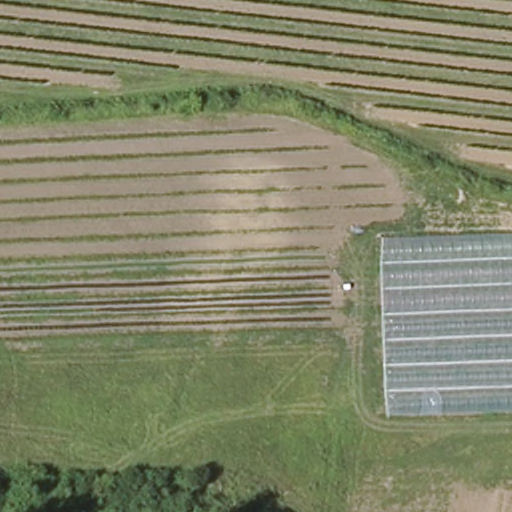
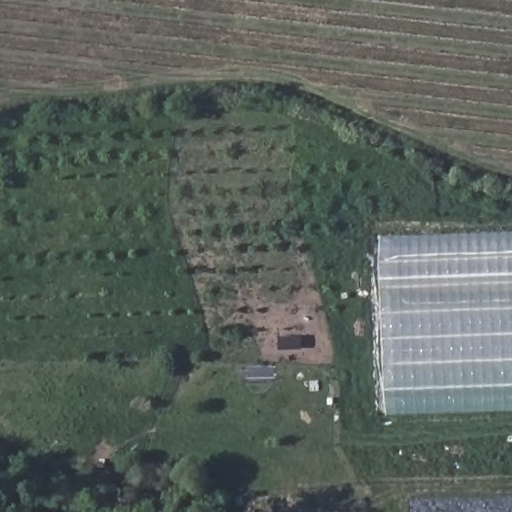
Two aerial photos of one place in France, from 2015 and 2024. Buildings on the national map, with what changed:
unchanged [(385,416),(380,237),(512,232),(512,409),(385,416)]

